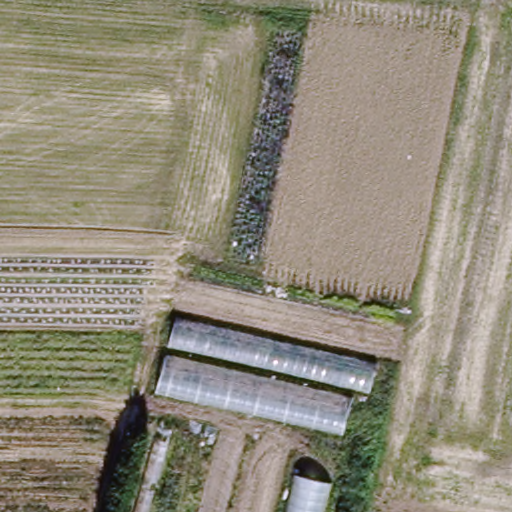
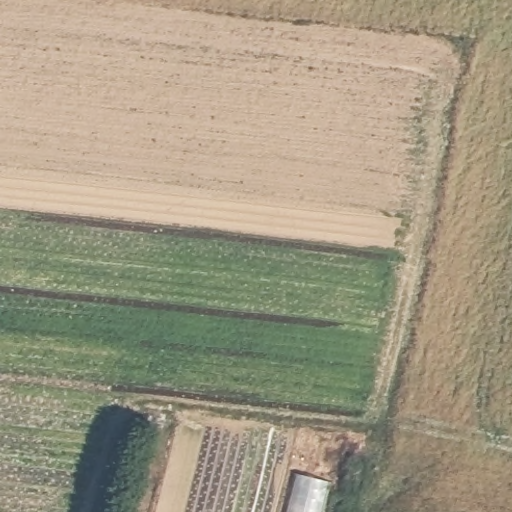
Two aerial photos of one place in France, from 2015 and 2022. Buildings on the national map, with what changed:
demolished [(175,315),(377,361),(370,391),(355,387),(344,436),(155,389),(175,315)]
demolished [(197,512),(219,432),(287,451),(277,489),(271,512),(197,512)]
unchanged [(323,512),(285,512),(295,473),(331,483),(323,512)]

